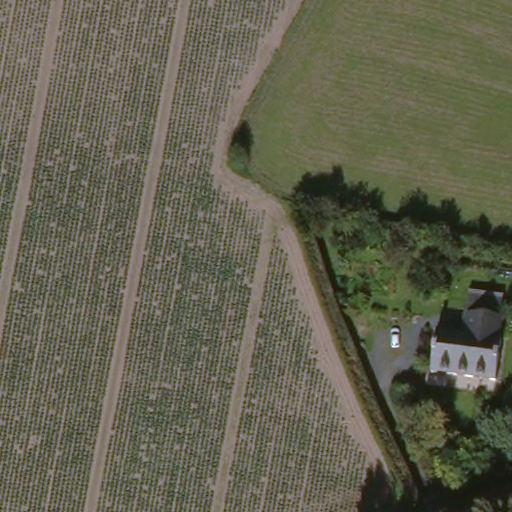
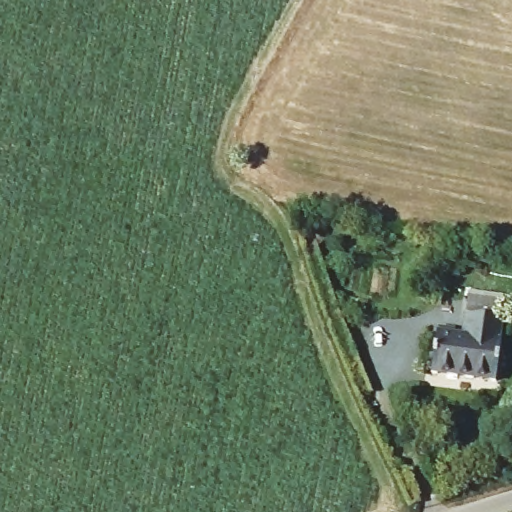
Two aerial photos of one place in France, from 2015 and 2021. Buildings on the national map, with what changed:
unchanged [(493,347),(495,348),(490,388),(424,379),(430,339),(456,342),(459,323),(459,320),(495,324),(493,347)]

